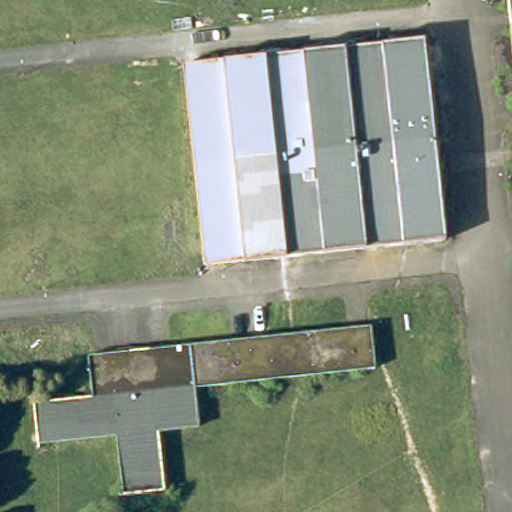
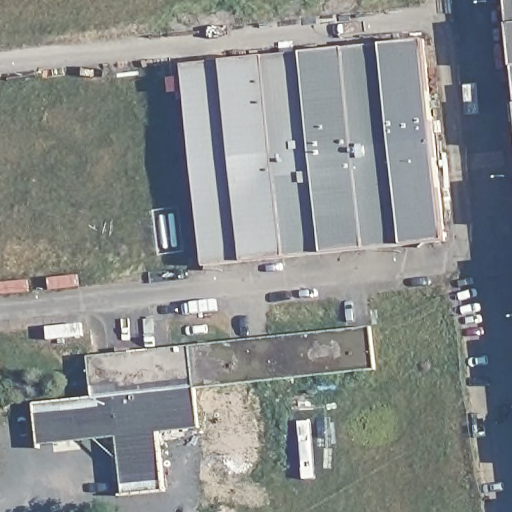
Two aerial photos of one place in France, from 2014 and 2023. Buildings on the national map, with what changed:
unchanged [(190,67),(430,47),(446,244),(206,265),(190,67)]
unchanged [(159,435),(164,490),(124,493),(118,441),(41,449),(37,404),(96,396),(92,357),(375,324),(379,369),(197,388),(202,431),(159,435)]

